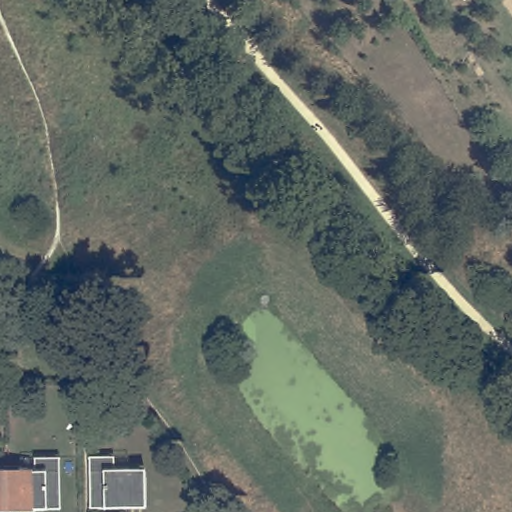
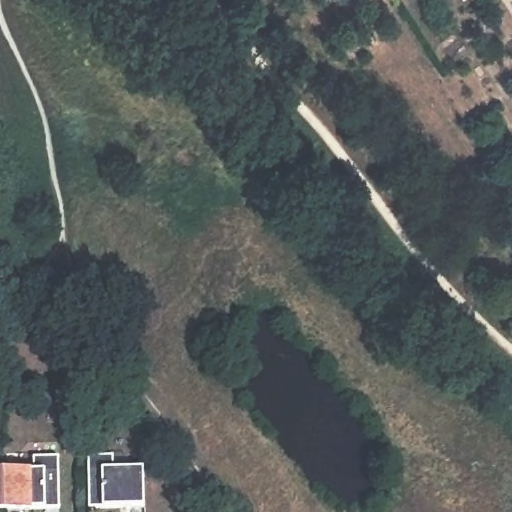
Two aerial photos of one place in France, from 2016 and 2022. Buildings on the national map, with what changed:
unchanged [(113,459),(113,473),(143,473),(144,511),(89,511),(88,460),(113,459)]
unchanged [(3,512),(3,474),(33,474),(33,460),(58,460),(59,512),(3,512)]
unchanged [(0,512),(0,475),(3,474),(3,512),(0,512)]

